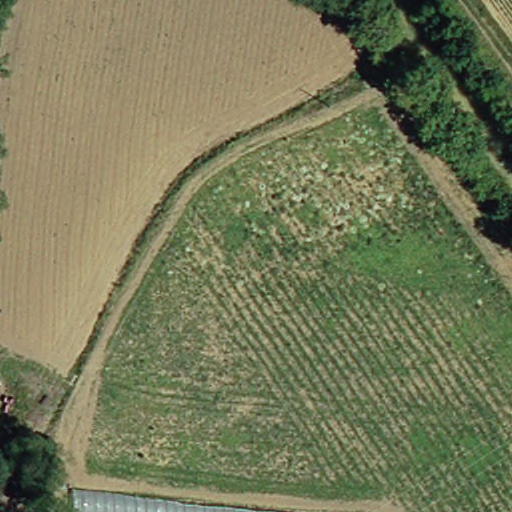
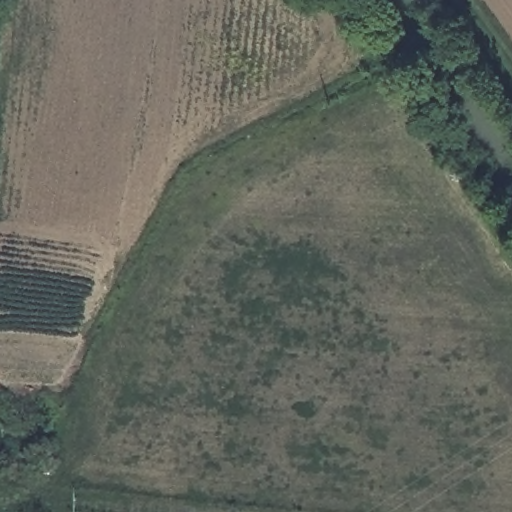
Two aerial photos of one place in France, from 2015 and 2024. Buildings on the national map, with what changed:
demolished [(74,491),(305,512),(73,512),(74,491)]

